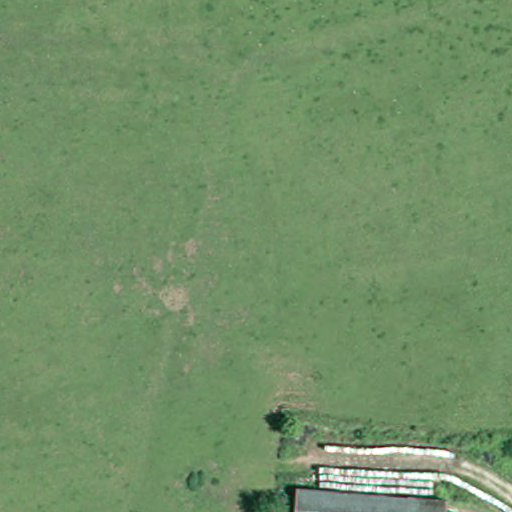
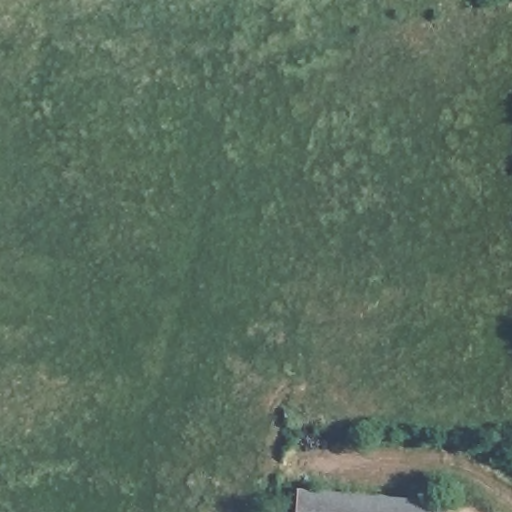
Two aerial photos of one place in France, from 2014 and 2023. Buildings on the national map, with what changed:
unchanged [(302,493),(429,512),(300,512),(302,493)]

